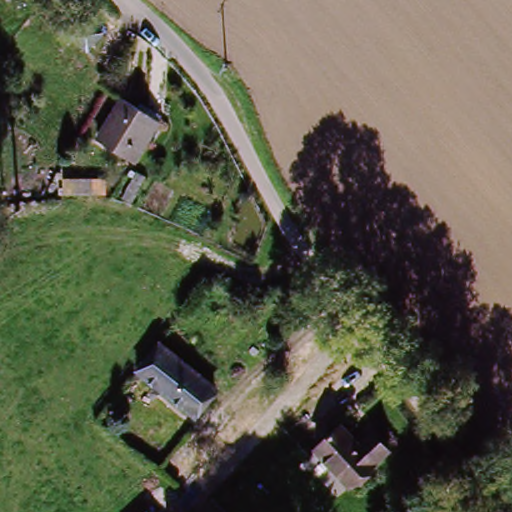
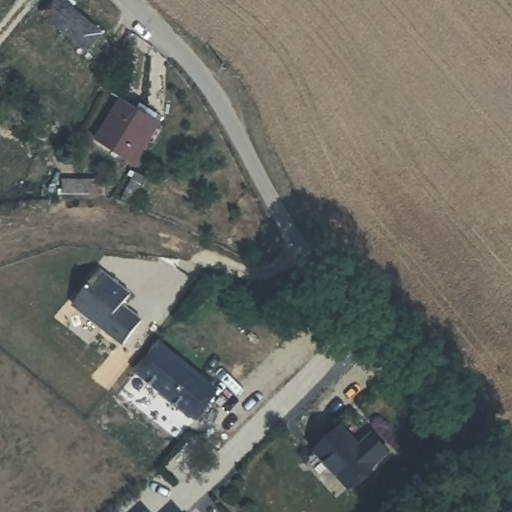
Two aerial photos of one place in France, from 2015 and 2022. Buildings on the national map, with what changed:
unchanged [(90,50),(47,20),(40,12),(50,0),(60,0),(64,4),(103,34),(90,50)]
unchanged [(102,146),(124,102),(139,110),(142,104),(163,115),(138,163),(102,146)]
unchanged [(69,198),(67,180),(100,171),(102,196),(69,198)]
new [(75,307),(103,271),(134,295),(125,306),(145,321),(127,346),(75,307)]
unchanged [(137,371),(160,343),(213,388),(190,415),(137,371)]
unchanged [(315,450),(345,426),(362,445),(377,436),(397,460),(352,496),(315,450)]

